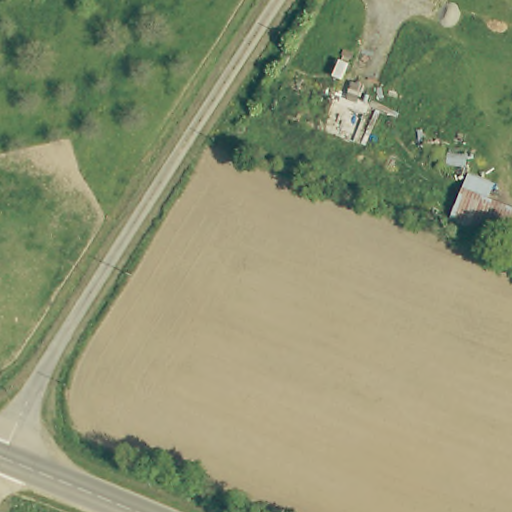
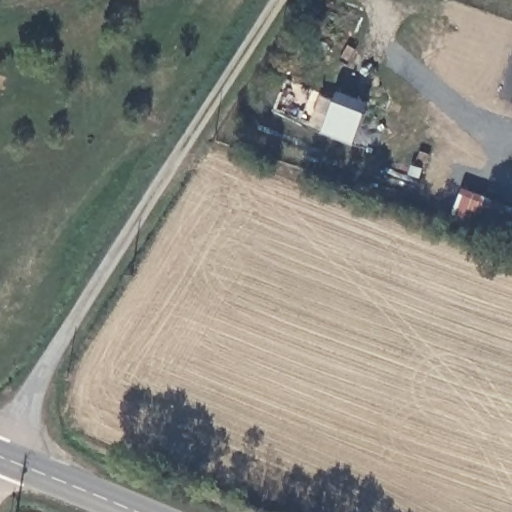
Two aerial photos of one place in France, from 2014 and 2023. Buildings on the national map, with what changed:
new [(353,144),(321,133),(337,92),(368,105),(353,144)]
unchanged [(512,246),(450,222),(463,189),(512,207),(512,246)]

